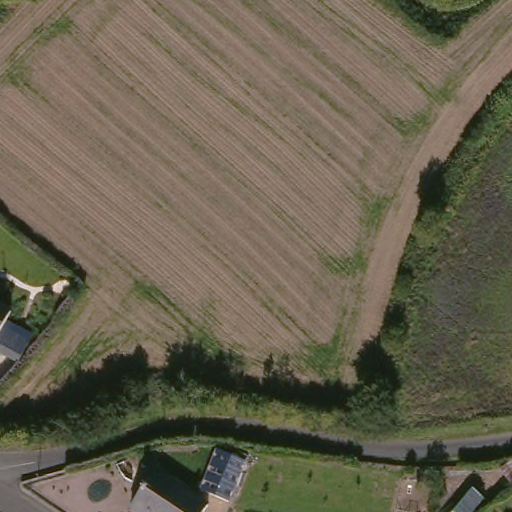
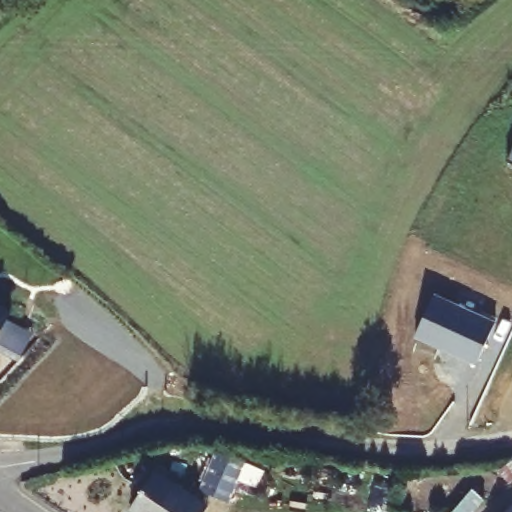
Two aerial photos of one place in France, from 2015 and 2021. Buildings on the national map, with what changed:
new [(512,164),(506,161),(512,148),(512,164)]
new [(433,296),(495,325),(476,365),(414,336),(433,296)]
unchanged [(11,310),(0,332),(0,304),(11,310)]
unchanged [(246,460),(231,499),(203,489),(207,477),(192,471),(203,446),(246,460)]
unchanged [(204,512),(132,512),(158,471),(209,505),(204,512)]

